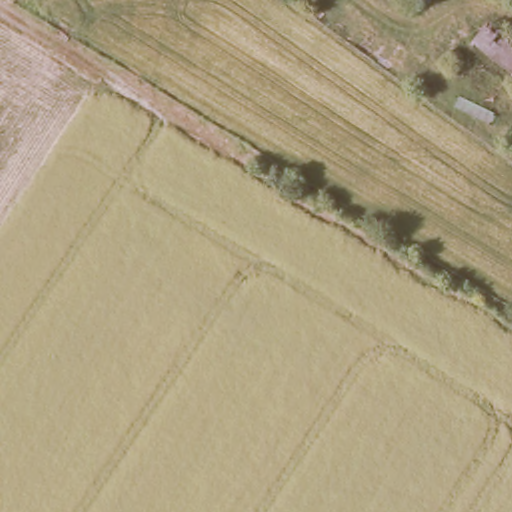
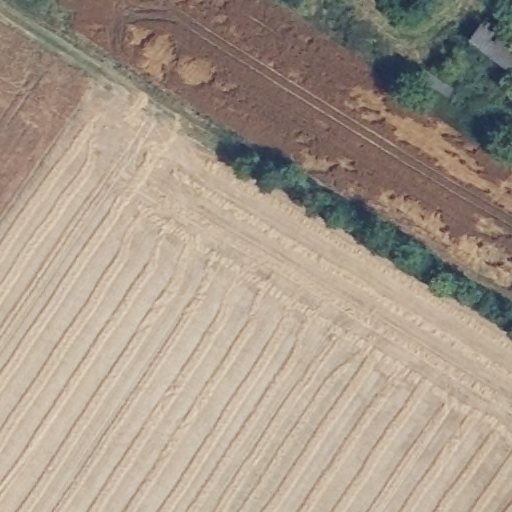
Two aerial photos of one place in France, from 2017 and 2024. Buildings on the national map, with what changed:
unchanged [(425,0),(436,0),(434,5),(425,0)]
unchanged [(488,15),(512,32),(512,71),(467,41),(488,15)]

